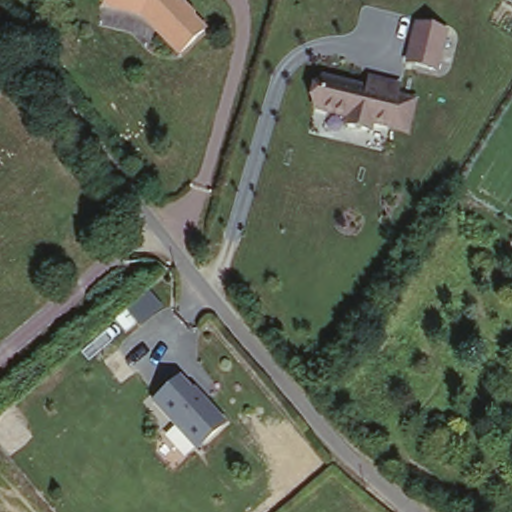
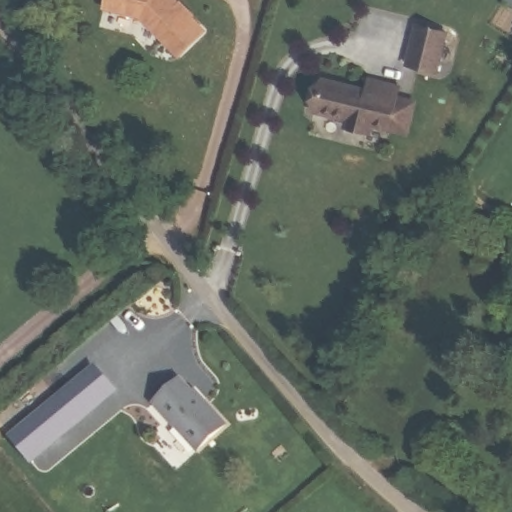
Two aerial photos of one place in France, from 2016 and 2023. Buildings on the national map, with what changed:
unchanged [(187,0),(214,30),(182,57),(148,15),(102,6),(103,0),(187,0)]
new [(512,0),(512,7),(502,1),(503,0),(512,0)]
unchanged [(449,30),(438,75),(404,65),(415,24),(449,30)]
unchanged [(322,75),(365,87),(368,77),(402,88),(400,96),(418,101),(410,137),(374,128),(372,135),(344,128),(347,120),(315,113),(322,75)]
new [(111,391),(30,461),(10,438),(91,368),(111,391)]
unchanged [(182,372),(224,421),(194,446),(150,398),(182,372)]

